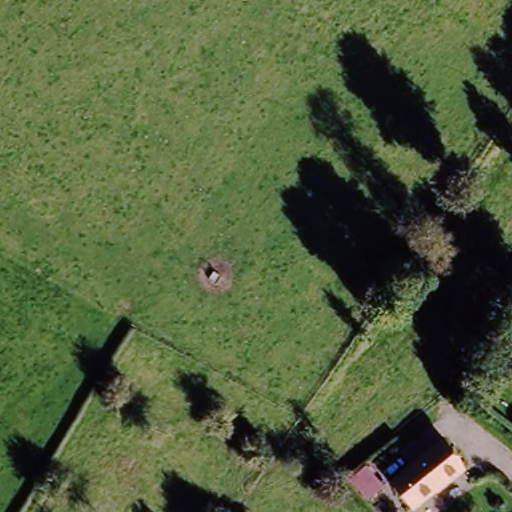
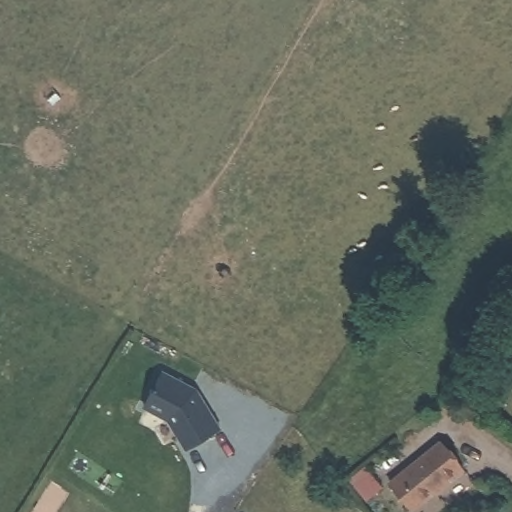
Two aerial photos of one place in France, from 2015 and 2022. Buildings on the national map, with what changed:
new [(195,385),(222,427),(187,450),(168,420),(143,407),(163,369),(195,385)]
unchanged [(410,512),(388,486),(435,445),(458,471),(410,512)]

